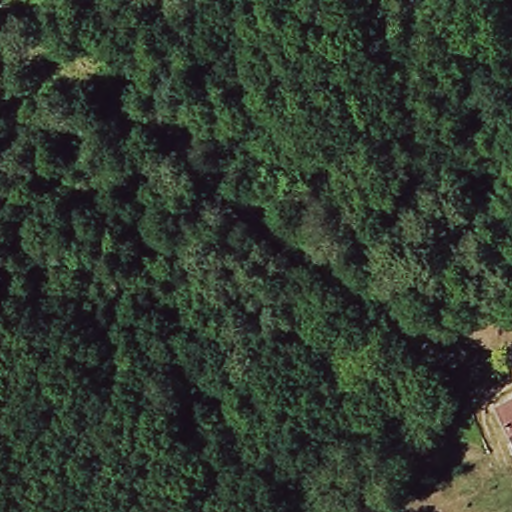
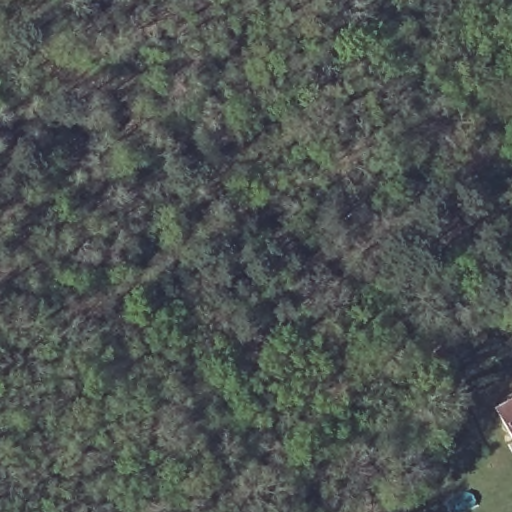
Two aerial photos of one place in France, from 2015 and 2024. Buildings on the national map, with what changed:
unchanged [(500,414),(512,407),(512,434),(500,414)]

